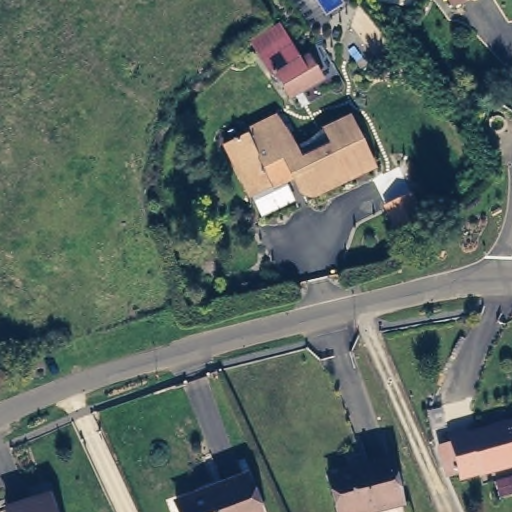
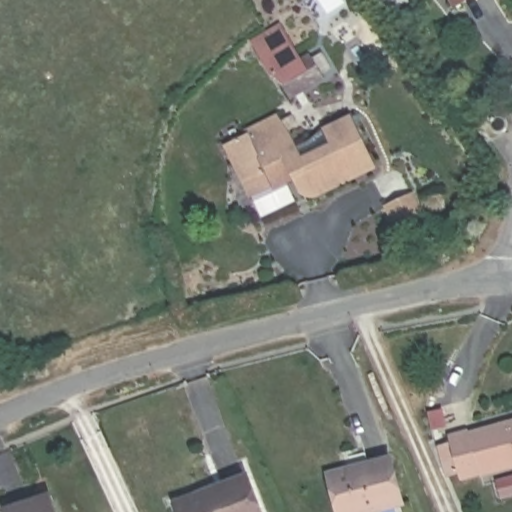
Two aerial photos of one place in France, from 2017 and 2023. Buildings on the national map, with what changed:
unchanged [(452,14),(444,0),(475,0),(452,14)]
unchanged [(310,55),(324,78),(296,97),(282,75),(278,76),(263,50),(257,39),(280,25),(287,36),(302,59),(310,55)]
unchanged [(366,175),(332,192),(313,198),(293,183),(245,200),(218,149),(230,143),(227,139),(235,134),(240,138),(249,136),(246,131),(275,117),(287,135),(290,133),(299,149),(315,142),(326,132),(335,127),(353,119),(378,169),(366,175)]
unchanged [(402,197),(418,228),(392,240),(377,209),(402,197)]
unchanged [(437,446),(447,444),(445,434),(464,431),(465,435),(512,425),(512,469),(455,480),(454,472),(442,473),(437,446)]
unchanged [(381,512),(336,512),(327,485),(326,479),(363,468),(386,461),(400,506),(381,512)]
unchanged [(181,512),(177,502),(210,491),(208,488),(247,475),(261,512),(181,512)]
unchanged [(23,512),(45,502),(51,512),(23,512)]

